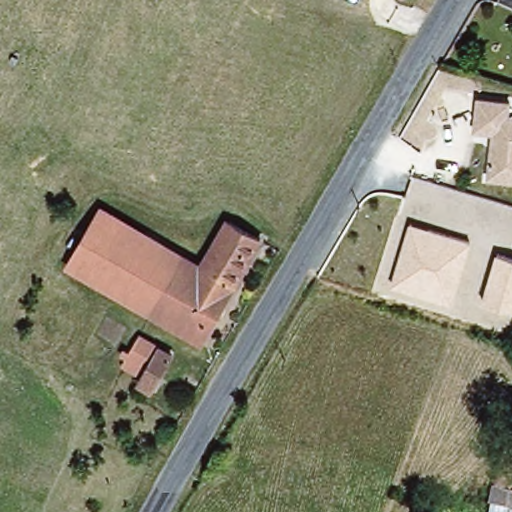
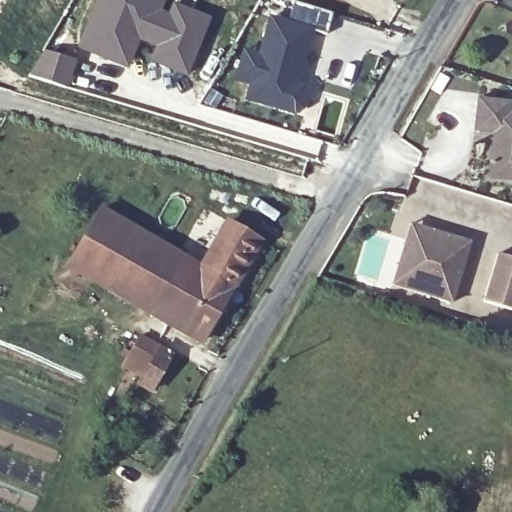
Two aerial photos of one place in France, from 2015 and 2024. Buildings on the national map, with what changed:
new [(131,0),(163,13),(175,17),(179,5),(214,19),(192,75),(157,61),(163,47),(144,39),(135,60),(133,69),(84,49),(86,41),(102,0),(131,0)]
new [(131,0),(168,0),(163,13),(131,0)]
new [(236,79),(246,50),(261,55),(274,18),(315,33),(295,92),(300,94),(305,101),(300,116),(291,120),(245,104),(251,84),(236,79)]
unchanged [(511,99),(510,114),(512,115),(512,183),(486,180),(491,134),(473,131),(476,95),(511,99)]
unchanged [(72,268),(105,212),(124,222),(91,279),(72,268)]
unchanged [(124,222),(205,267),(214,252),(231,222),(240,226),(262,238),(245,268),(201,342),(91,279),(124,222)]
unchanged [(405,224),(469,244),(451,305),(387,285),(405,224)]
unchanged [(498,253),(512,257),(512,313),(482,303),(498,253)]
unchanged [(174,359),(151,394),(140,388),(144,380),(125,369),(127,363),(122,359),(126,353),(131,354),(140,341),(174,359)]
demolished [(512,456),(512,509),(484,501),(500,453),(512,456)]

